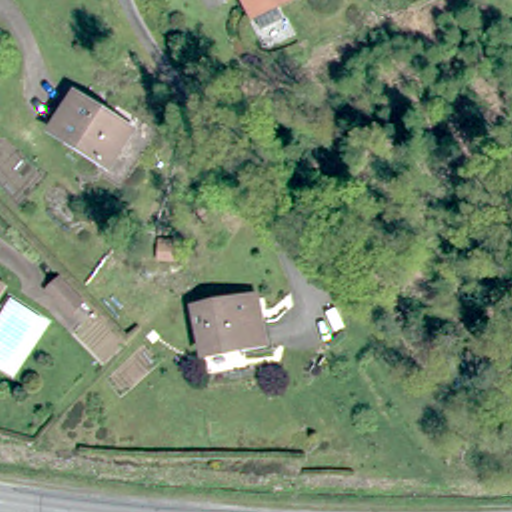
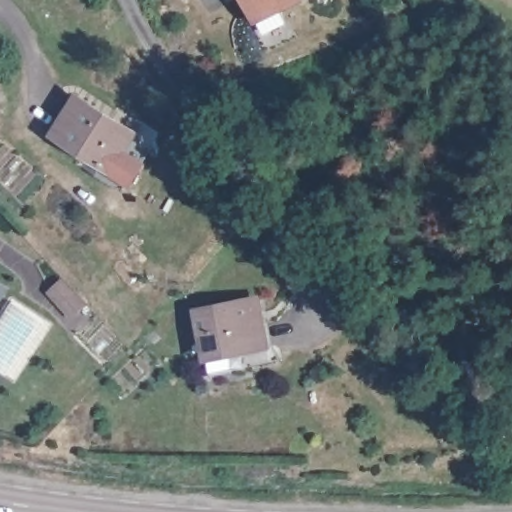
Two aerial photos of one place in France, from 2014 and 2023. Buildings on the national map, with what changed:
unchanged [(257,20),(247,0),(301,0),(298,1),(282,9),(290,25),(265,35),(257,20)]
unchanged [(138,137),(126,160),(117,155),(108,170),(59,143),(80,105),(138,137)]
unchanged [(83,311),(75,319),(53,298),(62,290),(83,311)]
unchanged [(8,298),(0,313),(0,294),(8,298)]
unchanged [(254,300),(268,354),(247,358),(236,304),(254,300)]
unchanged [(236,301),(236,304),(247,358),(212,366),(199,311),(236,301)]

